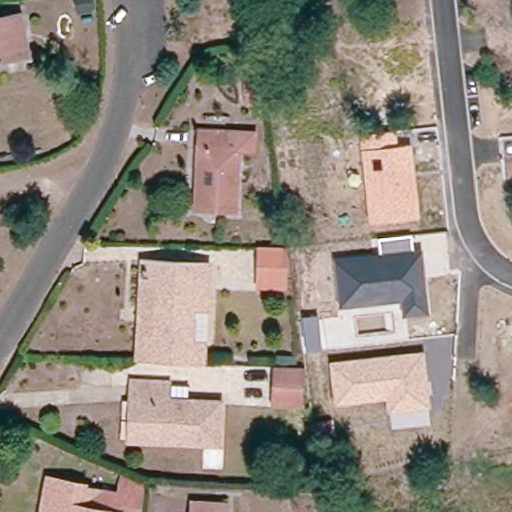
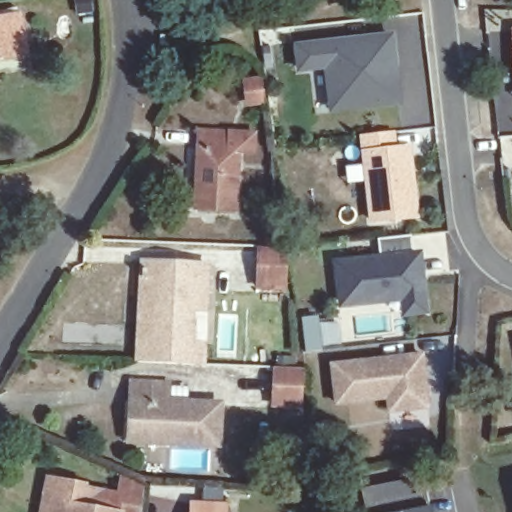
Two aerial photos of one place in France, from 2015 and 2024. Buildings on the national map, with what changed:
unchanged [(16,18),(26,56),(0,61),(0,21),(16,18)]
new [(512,26),(512,46),(511,26),(512,26)]
new [(401,103),(328,113),(322,69),(297,73),(295,43),(394,33),(401,103)]
unchanged [(277,101),(258,103),(255,83),(274,80),(277,101)]
unchanged [(200,208),(203,129),(237,130),(261,130),(260,149),(245,148),(242,213),(200,208)]
unchanged [(361,133),(397,129),(400,145),(412,144),(420,220),(368,224),(361,133)]
unchanged [(335,257),(379,253),(378,239),(412,235),(415,251),(422,250),(430,316),(403,318),(402,301),(340,308),(335,257)]
unchanged [(297,256),(292,292),(262,290),(263,254),(297,256)]
unchanged [(144,262),(165,263),(166,271),(184,271),(185,264),(207,265),(207,292),(205,292),(205,310),(192,310),(191,323),(194,323),(194,343),(209,344),(208,364),(138,361),(139,341),(142,287),(144,262)]
unchanged [(330,363),(423,352),(432,409),(387,413),(386,401),(335,406),(330,363)]
unchanged [(308,369),(306,406),(280,404),(281,368),(308,369)]
unchanged [(136,399),(136,380),(171,381),(172,396),(227,399),(225,443),(180,440),(135,439),(136,399)]
unchanged [(45,501),(40,500),(44,478),(80,484),(118,489),(122,467),(142,475),(137,512),(115,511),(115,512),(43,512),(45,501)]
new [(361,490),(409,480),(412,497),(425,495),(427,508),(430,508),(431,512),(365,512),(361,490)]
unchanged [(195,507),(228,507),(228,512),(194,512),(195,507)]

